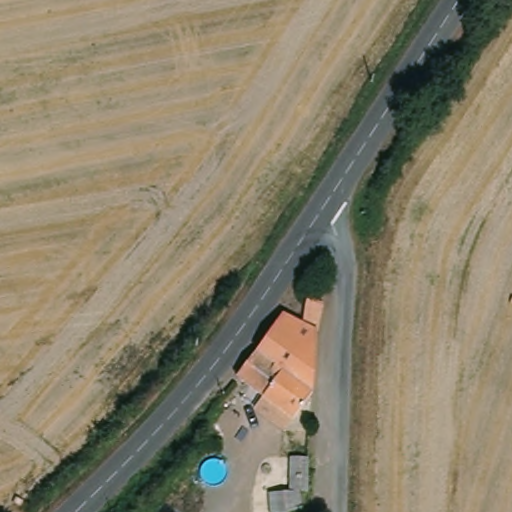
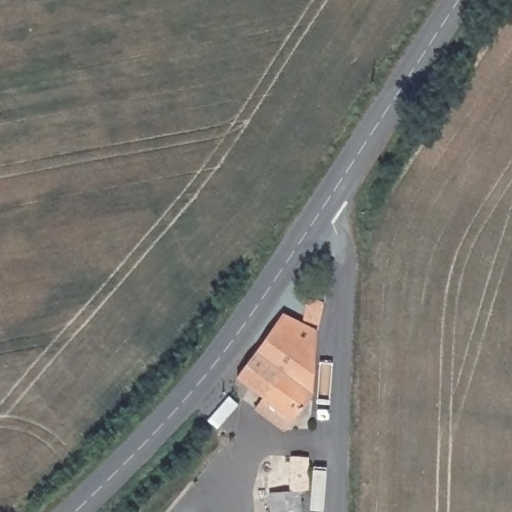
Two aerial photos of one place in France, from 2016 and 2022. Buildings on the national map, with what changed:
unchanged [(297,417),(242,376),(298,296),(308,302),(310,296),(315,291),(317,288),(327,291),(321,326),(317,392),(297,417)]
unchanged [(307,496),(308,512),(277,512),(275,496),(295,493),(295,461),(313,461),(313,491),(307,496)]

